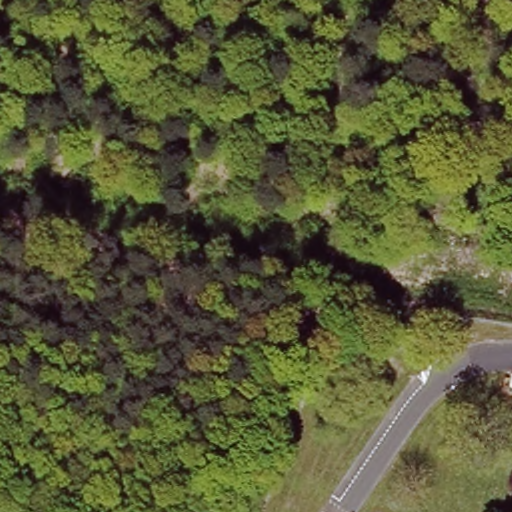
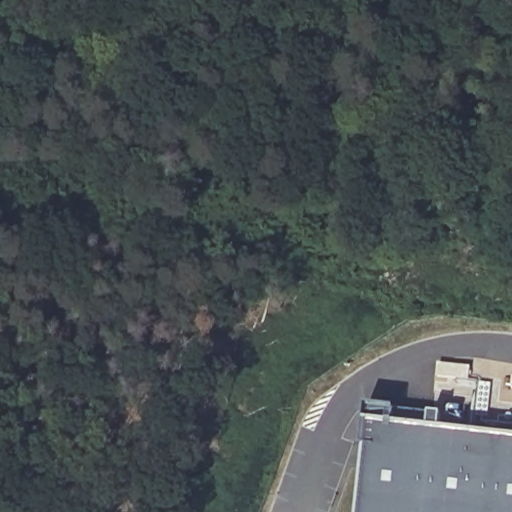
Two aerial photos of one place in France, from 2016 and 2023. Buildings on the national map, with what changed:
new [(512,443),(512,512),(355,512),(365,424),(512,443)]

